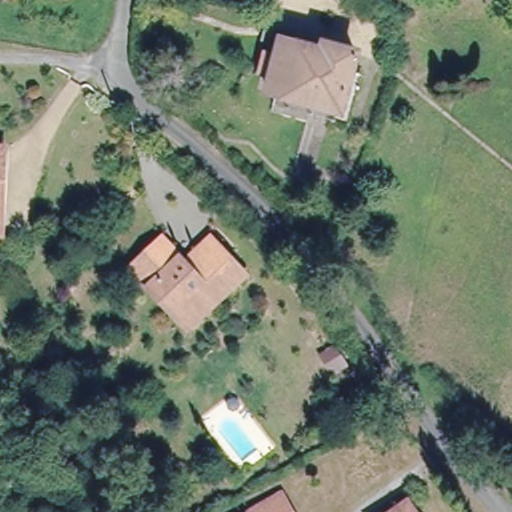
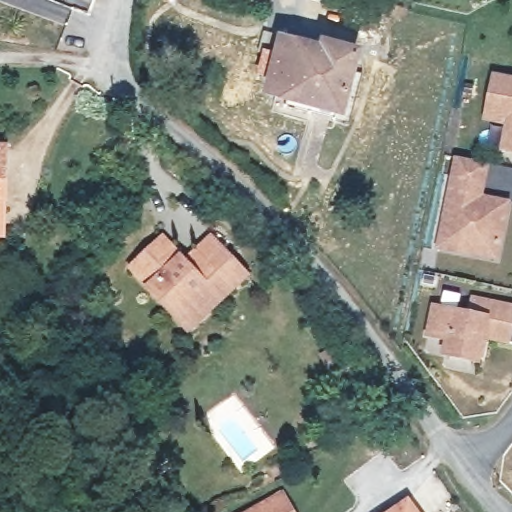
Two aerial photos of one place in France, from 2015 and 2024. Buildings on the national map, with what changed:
unchanged [(323,54),(326,45),(358,54),(343,111),(272,91),(276,75),(269,74),(273,56),(280,59),(285,41),(323,54)]
new [(504,151),(502,151),(507,123),(485,118),(489,99),(493,76),(512,80),(512,151),(505,150),(504,151)]
unchanged [(0,233),(0,150),(5,150),(1,221),(1,234),(0,233)]
new [(467,252),(438,246),(452,175),(456,156),(487,163),(483,181),(480,196),(502,201),(506,207),(498,245),(495,258),(467,252)]
unchanged [(166,303),(126,260),(148,239),(156,232),(164,241),(177,255),(204,232),(236,266),(203,298),(181,319),(166,303)]
new [(477,359),(445,352),(448,337),(427,333),(433,307),(470,315),(473,298),(512,306),(512,314),(510,325),(506,341),(482,336),(477,359)]
unchanged [(289,512),(250,512),(279,495),(289,512)]
unchanged [(414,512),(392,512),(406,501),(414,512)]

